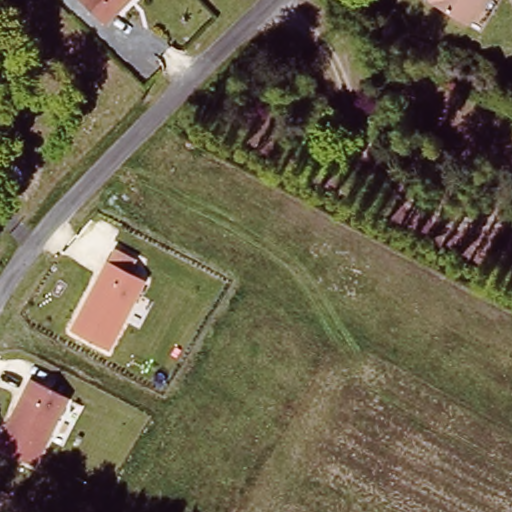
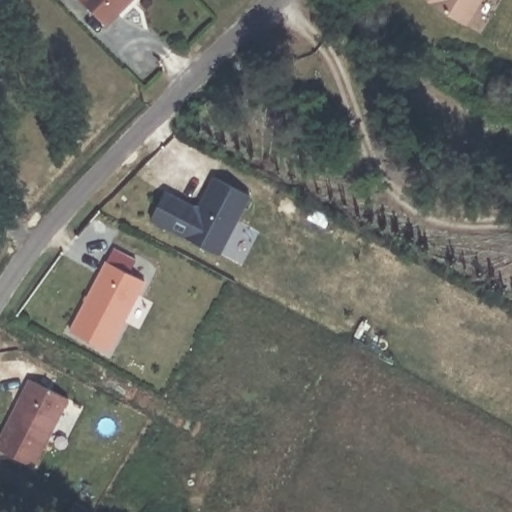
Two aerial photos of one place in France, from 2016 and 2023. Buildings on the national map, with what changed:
unchanged [(100,24),(77,0),(125,0),(100,24)]
unchanged [(464,25),(424,0),(480,0),(464,25)]
new [(223,256),(151,221),(167,190),(199,207),(216,177),(253,197),(223,256)]
unchanged [(146,280),(108,351),(68,328),(105,259),(146,280)]
unchanged [(69,400),(35,467),(0,449),(0,430),(27,377),(69,400)]

